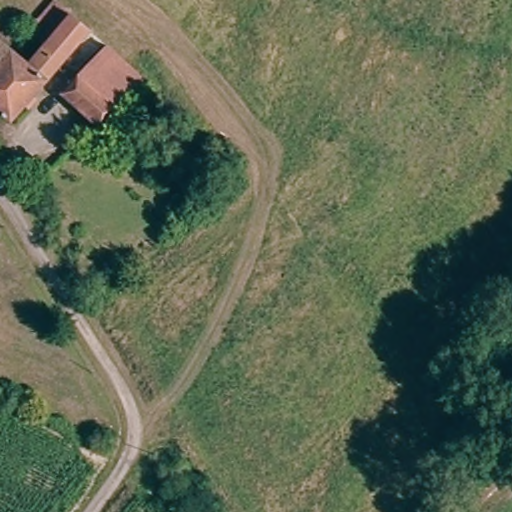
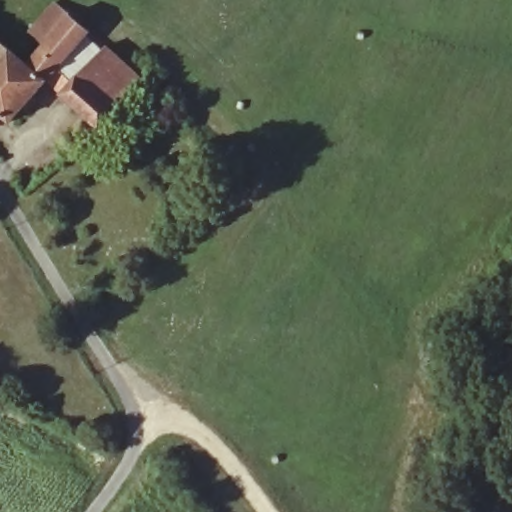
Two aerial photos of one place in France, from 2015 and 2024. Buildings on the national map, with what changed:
unchanged [(5,116),(0,112),(0,24),(26,51),(70,9),(90,29),(5,116)]
unchanged [(97,128),(62,93),(105,44),(140,79),(97,128)]

